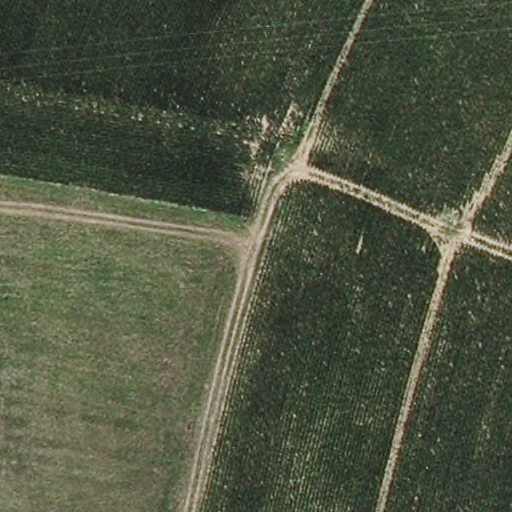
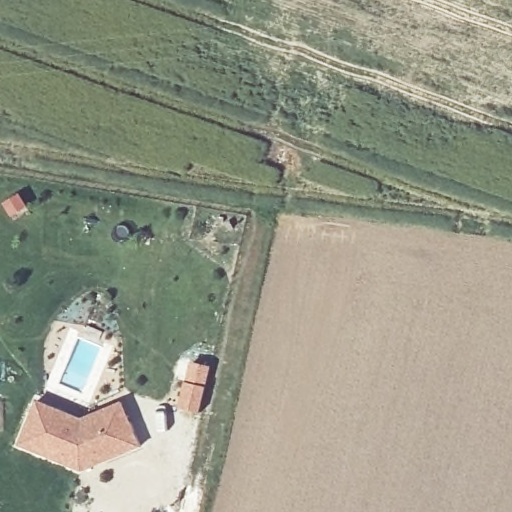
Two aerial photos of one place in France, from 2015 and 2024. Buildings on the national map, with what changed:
new [(80,422),(120,406),(126,420),(137,451),(79,473),(16,448),(35,403),(80,422)]

